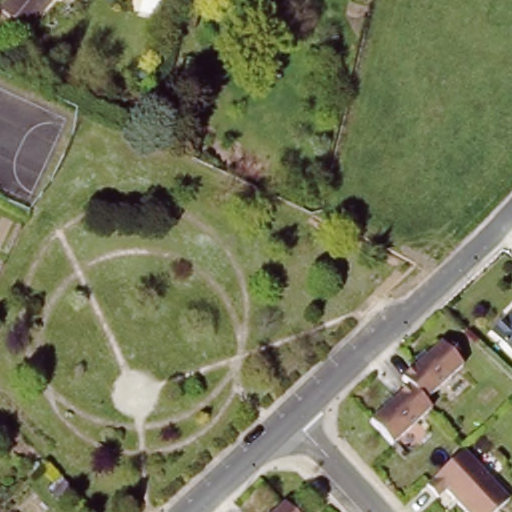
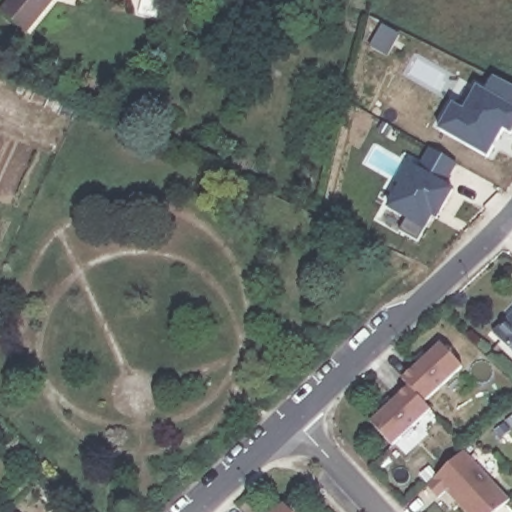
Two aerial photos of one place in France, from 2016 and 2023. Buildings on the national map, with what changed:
new [(0,10),(8,0),(49,0),(30,30),(0,10)]
new [(508,140),(499,135),(488,156),(439,130),(453,102),(464,108),(477,85),(486,91),(494,76),(512,86),(512,133),(511,134),(508,140)]
new [(444,184),(454,189),(437,219),(433,217),(425,231),(422,229),(418,239),(399,229),(405,218),(387,207),(412,163),(418,168),(429,147),(458,164),(444,184)]
unchanged [(512,315),(512,347),(497,331),(512,315)]
unchanged [(400,378),(437,343),(459,366),(422,401),(428,408),(391,443),(369,420),(406,385),(400,378)]
unchanged [(506,496),(489,512),(464,512),(441,488),(434,494),(423,483),(462,448),(506,496)]
unchanged [(279,503),(288,512),(270,512),(279,503)]

